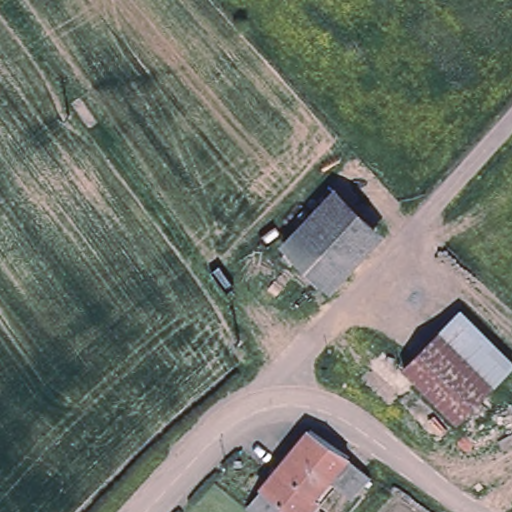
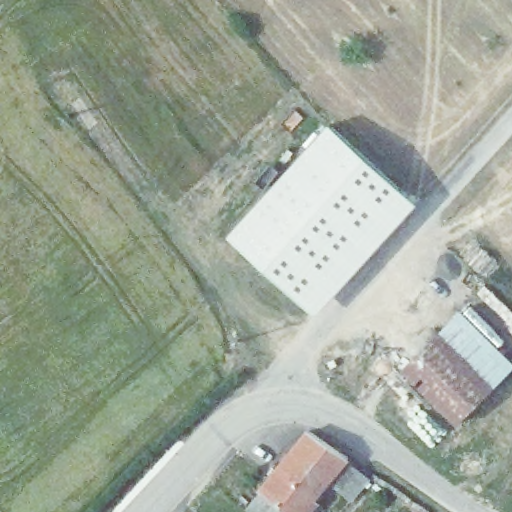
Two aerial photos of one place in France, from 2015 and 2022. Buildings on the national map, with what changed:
new [(417,203),(317,315),(227,235),(328,124),(417,203)]
unchanged [(464,315),(512,361),(512,373),(462,424),(407,372),(464,315)]
unchanged [(349,499),(327,480),(312,498),(275,473),(307,431),(347,459),(346,460),(367,479),(349,499)]
unchanged [(275,473),(312,498),(317,502),(308,512),(285,512),(260,490),(275,473)]
unchanged [(260,490),(285,512),(254,512),(247,506),(260,490)]

